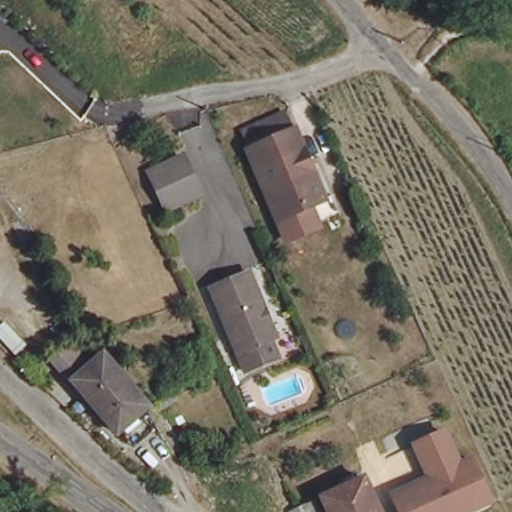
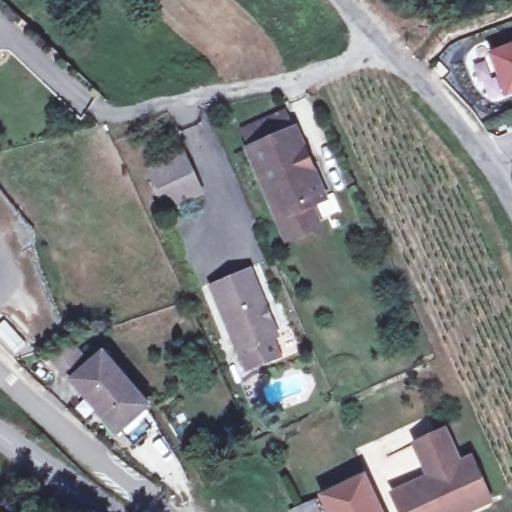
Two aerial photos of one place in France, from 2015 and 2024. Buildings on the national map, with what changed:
new [(488,53),(512,43),(512,93),(505,96),(488,53)]
unchanged [(280,231),(273,213),(243,142),(247,141),(240,125),(280,109),(286,124),(291,122),(320,193),(305,200),(312,218),(280,231)]
unchanged [(157,172),(192,156),(207,189),(171,205),(157,172)]
unchanged [(261,362),(245,368),(210,286),(249,270),(265,307),(276,334),(271,336),(278,355),(261,362)]
unchanged [(112,431),(67,376),(51,354),(67,342),(83,364),(100,352),(145,407),(135,415),(148,433),(128,448),(115,429),(112,431)]
unchanged [(404,512),(396,495),(430,479),(428,476),(433,474),(418,442),(448,429),(463,464),(475,460),(488,490),(493,503),(471,512),(404,512)]
unchanged [(366,482),(377,510),(373,512),(333,512),(327,499),(366,482)]
unchanged [(309,498),(315,512),(299,512),(295,503),(309,498)]

